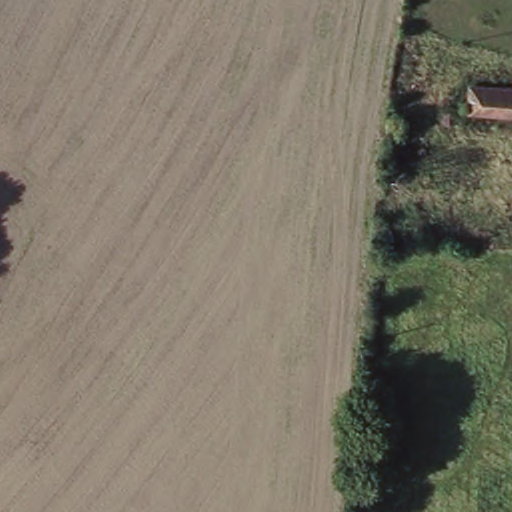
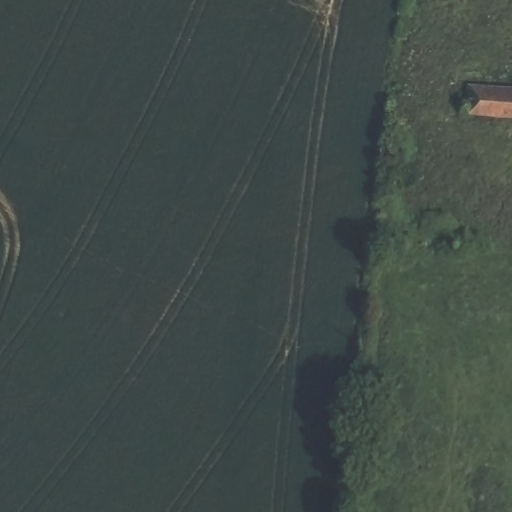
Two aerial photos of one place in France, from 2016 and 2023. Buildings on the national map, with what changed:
unchanged [(512,98),(512,123),(464,123),(465,98),(512,98)]

